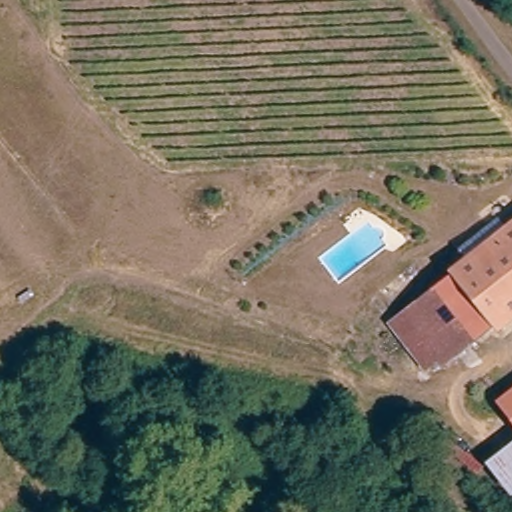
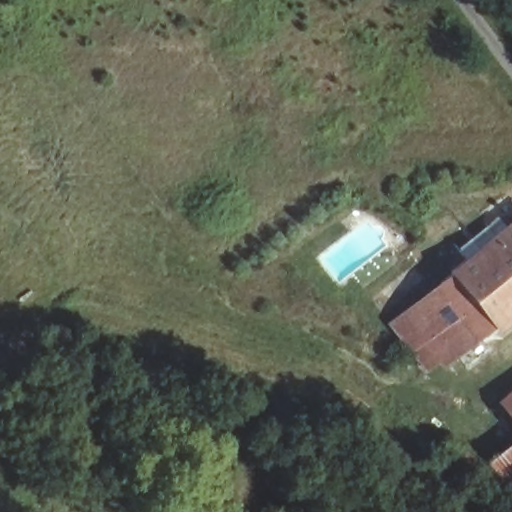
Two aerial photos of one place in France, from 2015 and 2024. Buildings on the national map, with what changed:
unchanged [(436,383),(425,369),(391,324),(453,274),(452,272),(465,262),(458,253),(471,243),(480,254),(512,228),(512,321),(503,328),(499,323),(447,364),(441,357),(435,362),(446,375),(436,383)]
unchanged [(508,405),(512,402),(512,410),(508,405)]
unchanged [(495,466),(512,454),(512,489),(495,466)]

